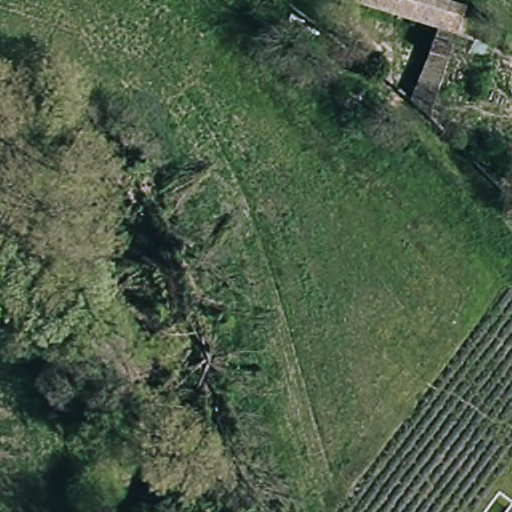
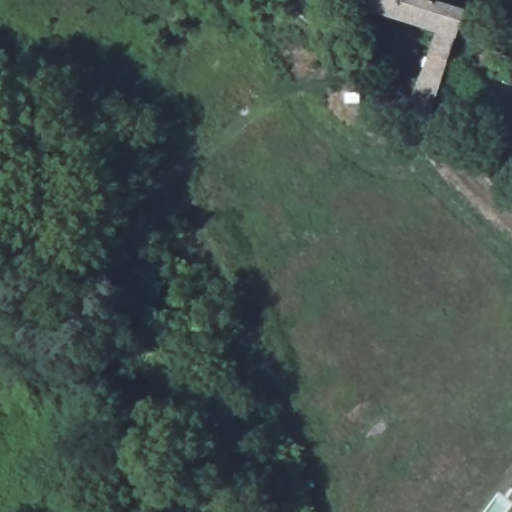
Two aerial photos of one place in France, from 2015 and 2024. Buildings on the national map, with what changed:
unchanged [(421,54),(429,30),(347,4),(349,0),(429,0),(458,9),(439,61),(420,114),(406,100),(421,54)]

